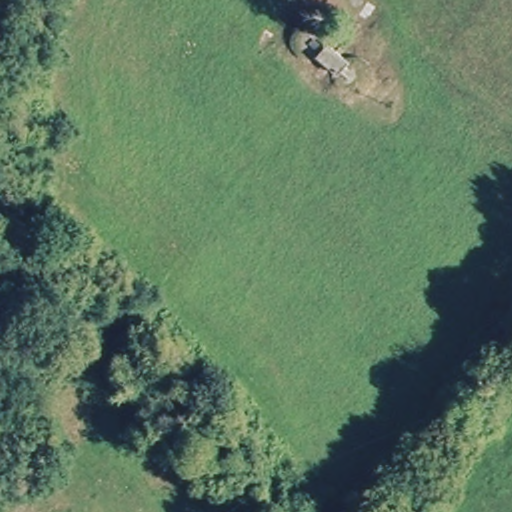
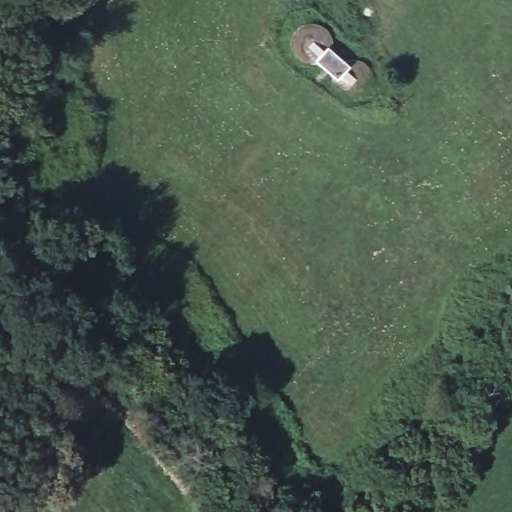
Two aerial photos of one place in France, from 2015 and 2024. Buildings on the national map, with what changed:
unchanged [(338,80),(319,62),(332,49),(352,65),(338,80)]

